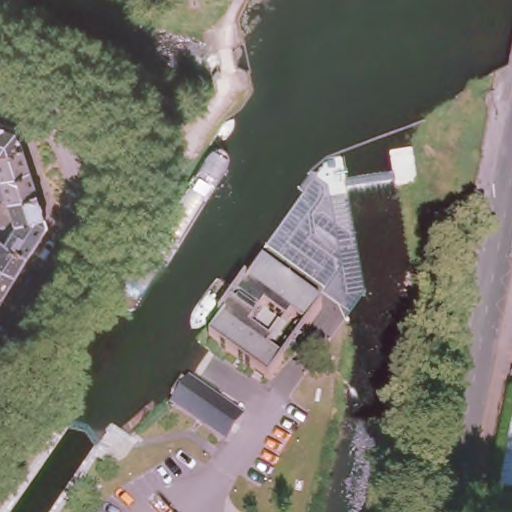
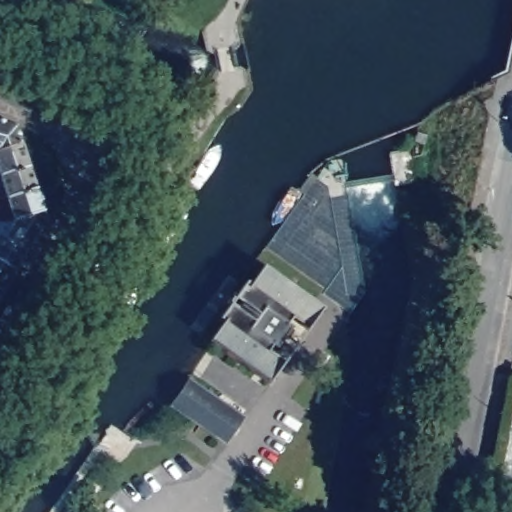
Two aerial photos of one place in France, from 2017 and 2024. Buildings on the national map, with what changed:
unchanged [(19,144),(26,166),(33,189),(41,212),(44,222),(24,253),(13,272),(0,293),(0,230),(4,222),(0,223),(0,199),(4,198),(0,185),(0,122),(13,126),(19,144)]
unchanged [(243,283),(246,285),(261,263),(321,306),(306,327),(290,316),(286,322),(264,306),(248,327),(271,343),(267,348),(283,360),(268,380),(208,338),(223,316),(221,315),(219,317),(217,316),(242,280),(244,281),(243,283)]
unchanged [(491,481),(512,373),(512,374),(512,485),(491,481)]
unchanged [(228,441),(176,407),(194,380),(246,415),(228,441)]

